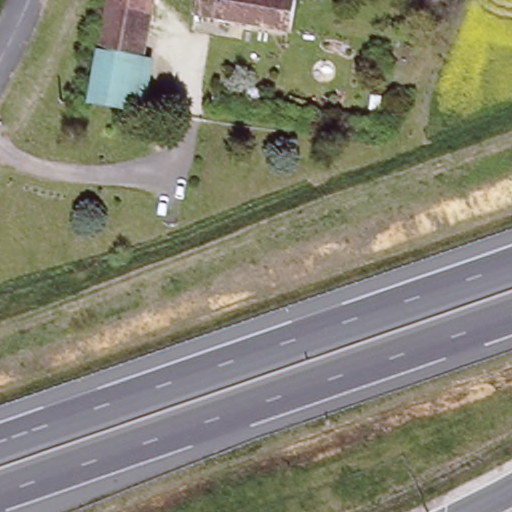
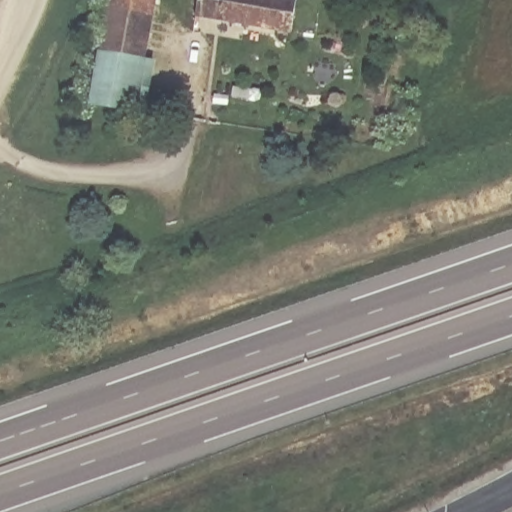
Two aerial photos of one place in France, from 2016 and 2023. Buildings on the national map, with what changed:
unchanged [(142,56),(99,46),(108,0),(149,0),(142,56)]
unchanged [(197,0),(293,0),(285,31),(194,17),(197,0)]
unchanged [(142,56),(152,57),(143,110),(87,98),(99,46),(142,56)]

